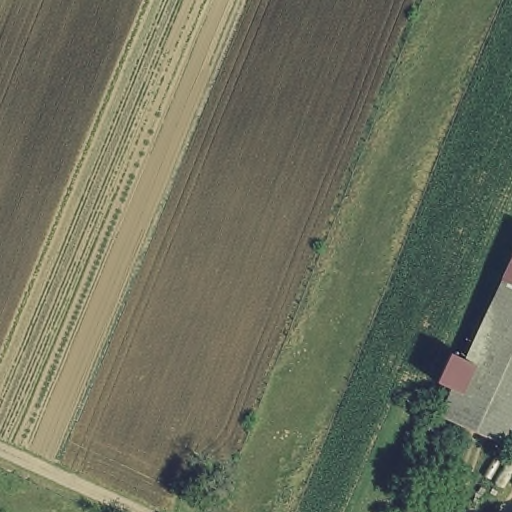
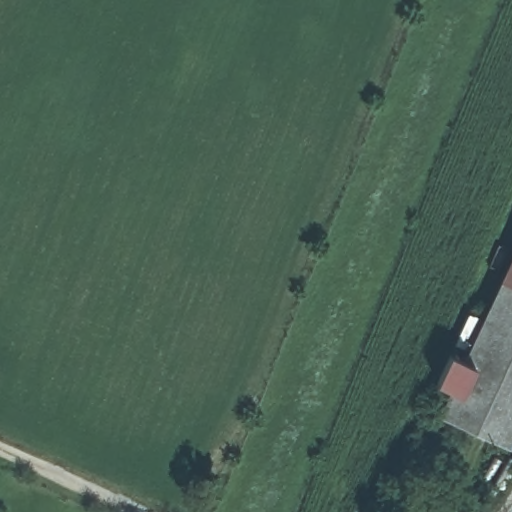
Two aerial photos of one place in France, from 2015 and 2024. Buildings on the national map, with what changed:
unchanged [(451,388),(436,382),(450,353),(464,359),(512,253),(512,447),(439,415),(451,388)]

